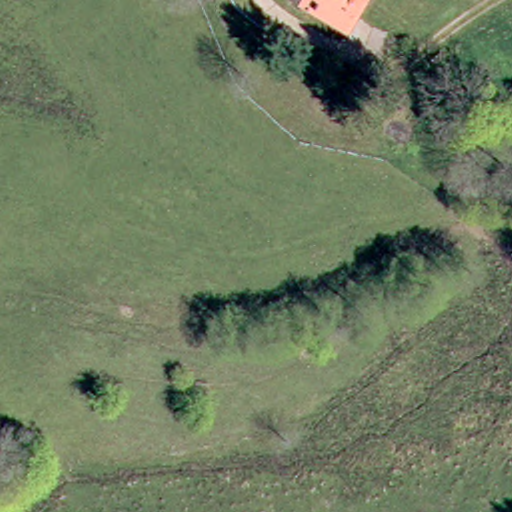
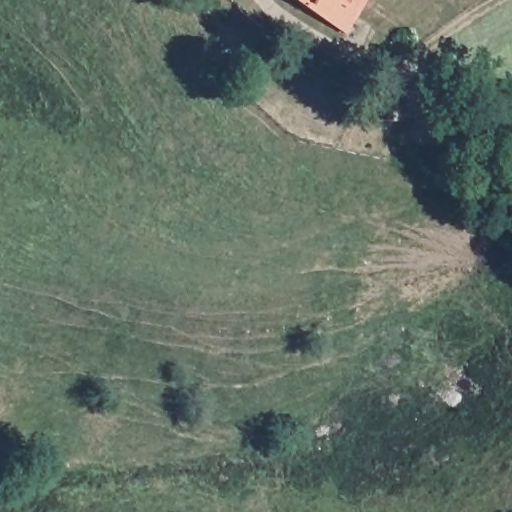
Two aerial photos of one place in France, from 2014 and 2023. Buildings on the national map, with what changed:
unchanged [(360,0),(344,30),(296,0),(360,0)]

